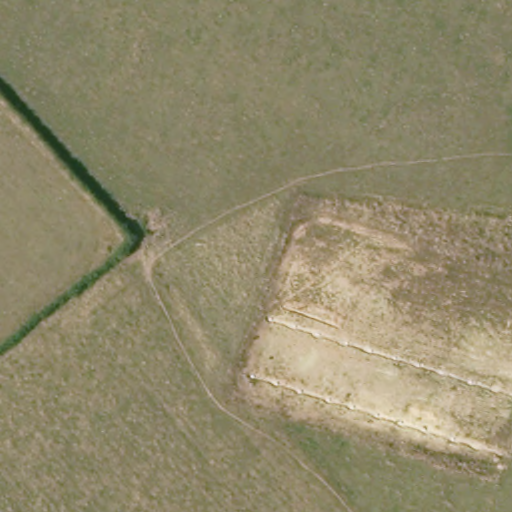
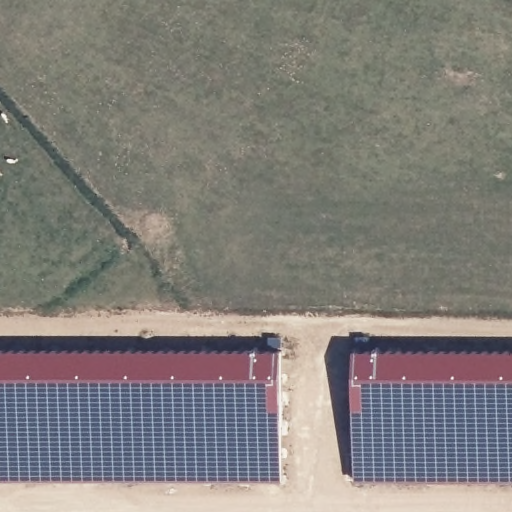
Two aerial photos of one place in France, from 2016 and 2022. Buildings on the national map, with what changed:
new [(275,480),(0,478),(0,348),(275,349),(275,480)]
new [(348,348),(512,350),(512,481),(347,480),(348,348)]

